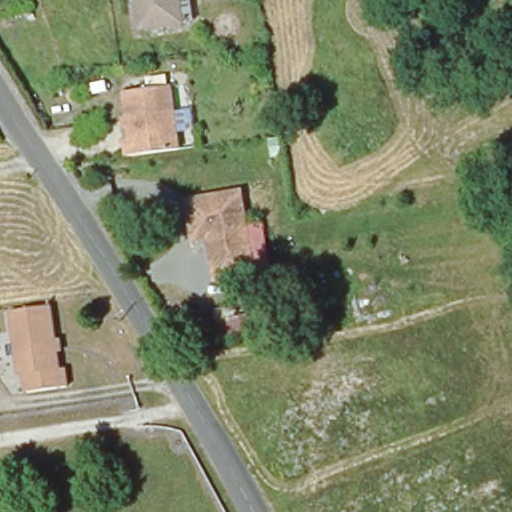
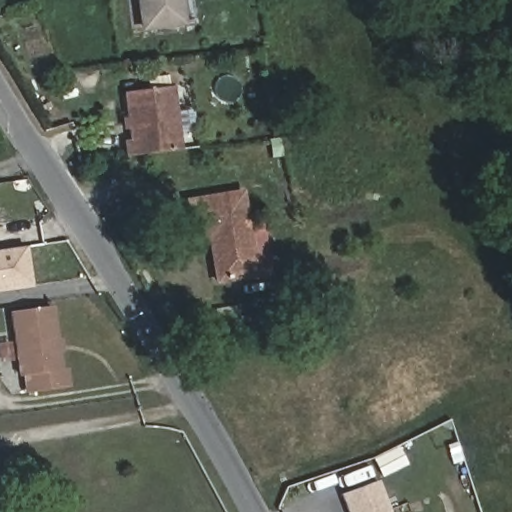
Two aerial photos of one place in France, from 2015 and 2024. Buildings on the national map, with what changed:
unchanged [(143,0),(181,0),(185,26),(147,32),(143,0)]
unchanged [(128,123),(125,96),(170,90),(174,116),(128,123)]
unchanged [(127,160),(125,143),(130,142),(128,123),(174,116),(180,152),(127,160)]
unchanged [(209,236),(195,236),(189,203),(243,195),(254,270),(255,275),(217,280),(216,276),(209,236)]
new [(24,250),(29,290),(0,294),(0,254),(24,250)]
unchanged [(27,383),(26,372),(20,372),(17,346),(14,323),(13,314),(53,308),(54,317),(57,340),(60,368),(68,366),(70,377),(71,385),(28,390),(27,383)]
new [(386,512),(345,512),(339,497),(373,482),(386,512)]

